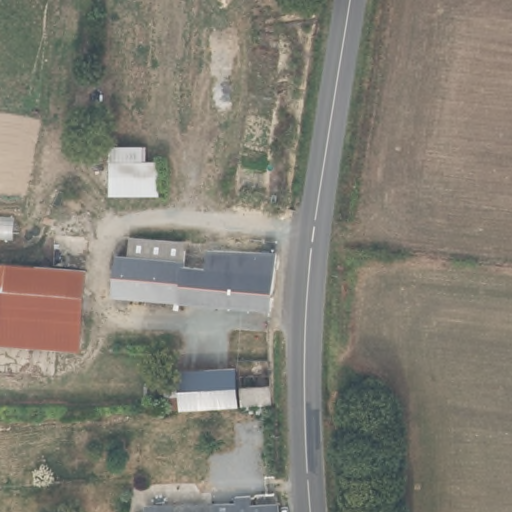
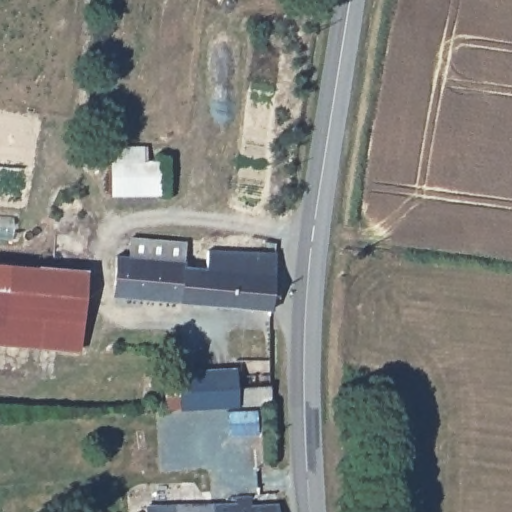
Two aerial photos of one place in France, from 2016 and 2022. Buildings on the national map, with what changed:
unchanged [(107,199),(104,148),(143,146),(142,163),(159,160),(158,196),(107,199)]
unchanged [(111,296),(115,259),(129,260),(129,236),(185,239),(184,270),(202,270),(202,254),(270,257),(270,312),(111,296)]
unchanged [(0,268),(31,271),(29,306),(14,304),(11,346),(0,345),(0,268)]
unchanged [(14,304),(29,306),(31,271),(80,276),(74,353),(11,346),(14,304)]
unchanged [(160,373),(216,368),(219,405),(162,410),(160,373)]
unchanged [(224,382),(252,380),(252,403),(224,405),(224,382)]
unchanged [(150,503),(214,500),(237,500),(237,495),(251,495),(251,503),(278,502),(279,512),(150,512),(150,503)]

